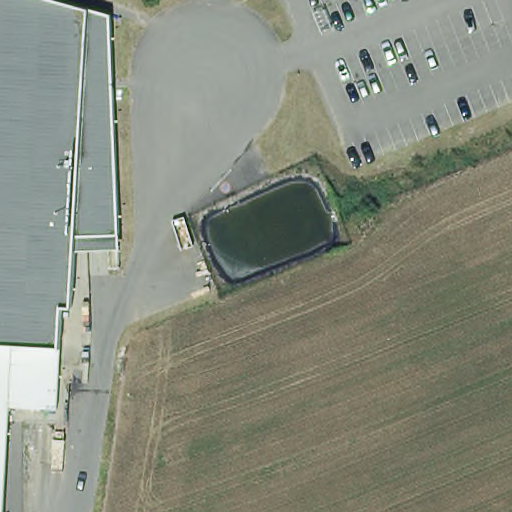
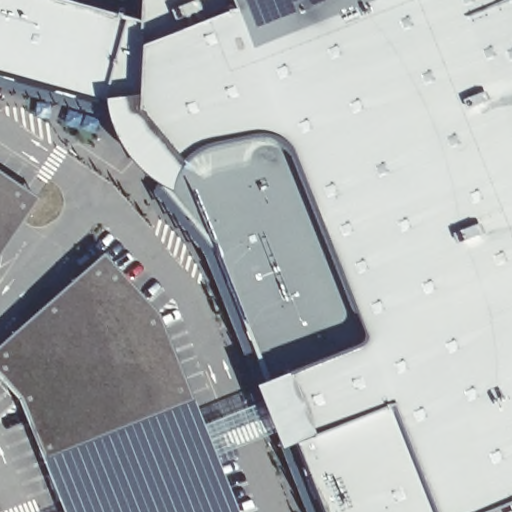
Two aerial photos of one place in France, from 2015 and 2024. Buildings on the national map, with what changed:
new [(139,26),(137,96),(101,103),(0,74),(0,0),(48,0),(122,21),(139,26)]
demolished [(111,31),(112,57),(112,59),(119,237),(87,237),(76,237),(75,255),(72,310),(63,309),(59,386),(57,411),(10,408),(9,423),(4,509),(4,512),(0,512),(0,0),(53,0),(111,16),(111,31)]
new [(139,26),(139,0),(512,0),(512,504),(492,512),(322,512),(296,446),(277,452),(252,388),(351,350),(357,345),(360,339),(360,332),(291,156),(284,146),(274,138),(260,136),(205,147),(180,164),(166,191),(132,168),(112,139),(101,103),(137,96),(139,26)]
new [(0,175),(37,200),(0,254),(0,175)]
new [(156,315),(236,512),(64,512),(22,400),(0,377),(0,346),(102,257),(156,315)]

